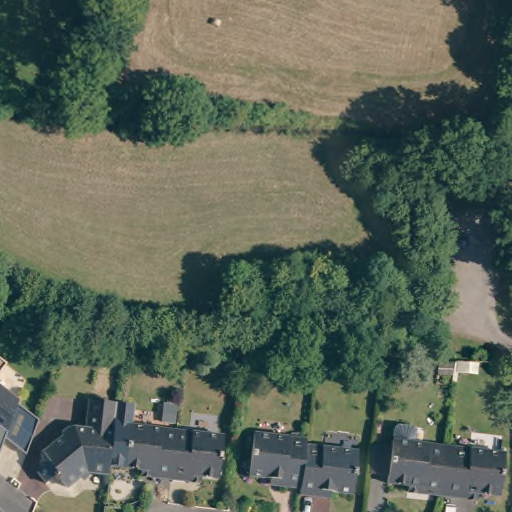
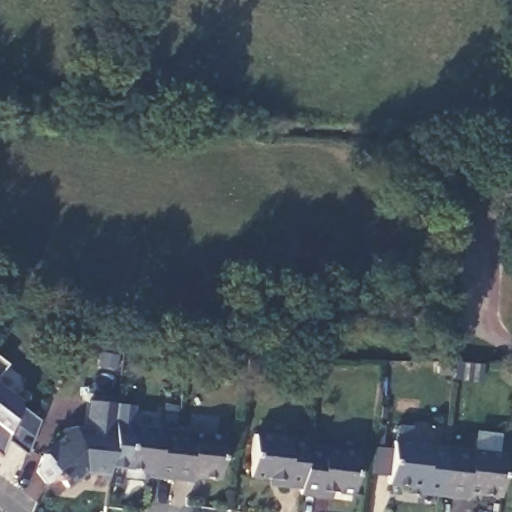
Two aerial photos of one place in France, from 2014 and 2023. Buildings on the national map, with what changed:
unchanged [(7,359),(0,368),(0,354),(7,359)]
unchanged [(453,366),(453,377),(439,377),(439,366),(453,366)]
unchanged [(27,450),(5,434),(0,448),(0,388),(2,389),(5,386),(19,397),(18,399),(39,416),(27,450)]
unchanged [(109,470),(80,467),(80,472),(66,484),(56,473),(46,482),(36,471),(42,454),(60,440),(61,432),(66,428),(86,430),(89,401),(116,404),(109,470)]
unchanged [(388,479),(389,471),(371,469),(374,437),(393,439),(394,424),(399,421),(413,422),(417,426),(415,440),(445,443),(440,486),(439,491),(419,489),(410,488),(410,482),(388,479)]
unchanged [(142,471),(124,469),(129,427),(177,432),(171,481),(151,478),(141,477),(142,471)]
unchanged [(191,483),(171,481),(177,432),(224,438),(219,480),(201,478),(201,484),(191,483)]
unchanged [(280,487),(281,479),(250,476),(254,434),(307,440),(306,447),(301,489),(280,487)]
unchanged [(459,494),(439,491),(440,486),(445,443),(505,450),(500,492),(470,489),(469,495),(459,494)]
unchanged [(306,447),(358,453),(353,495),(321,492),(321,498),(300,495),(301,489),(306,447)]

